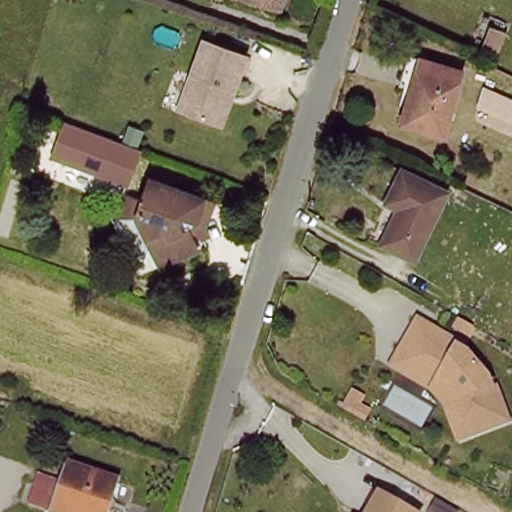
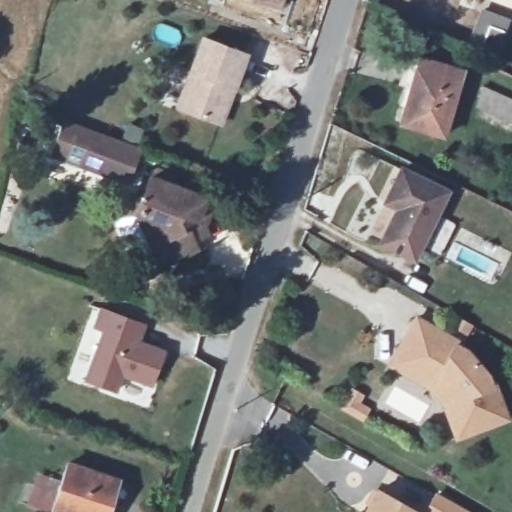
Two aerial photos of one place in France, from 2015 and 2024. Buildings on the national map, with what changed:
unchanged [(287,5),(273,0),(288,0),(287,5)]
unchanged [(196,85),(208,50),(251,66),(225,136),(190,122),(182,120),(196,85)]
unchanged [(465,77),(450,135),(405,124),(421,66),(465,77)]
unchanged [(512,122),(492,113),(500,95),(512,100),(512,122)]
unchanged [(110,140),(143,153),(130,188),(51,157),(64,122),(110,140)]
unchanged [(442,195),(413,264),(379,247),(393,214),(378,207),(396,170),(442,195)]
unchanged [(206,226),(190,220),(188,226),(192,235),(197,233),(206,255),(169,270),(146,217),(151,205),(159,183),(214,204),(206,226)]
unchanged [(146,217),(169,270),(149,279),(120,223),(121,222),(131,197),(151,205),(146,217)]
new [(145,323),(137,341),(166,352),(153,388),(122,378),(116,393),(81,382),(99,332),(89,329),(97,308),(145,323)]
unchanged [(448,405),(435,388),(394,365),(401,353),(421,318),(462,342),(460,346),(470,353),(489,375),(493,387),(497,385),(510,420),(472,434),(460,438),(448,405)]
unchanged [(120,477),(108,512),(65,512),(55,509),(72,462),(120,477)]
unchanged [(410,512),(373,512),(382,496),(410,512)]

